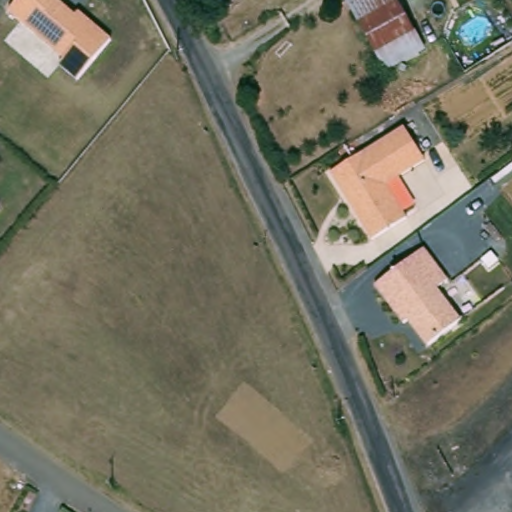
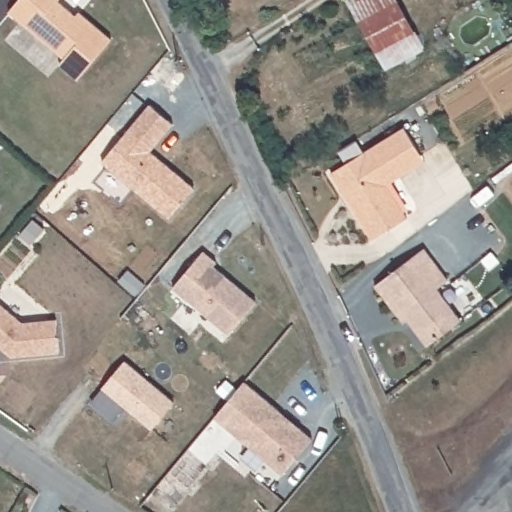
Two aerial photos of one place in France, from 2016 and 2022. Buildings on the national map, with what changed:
unchanged [(75,12),(78,8),(110,36),(76,76),(58,60),(63,55),(9,7),(15,0),(61,0),(75,12)]
unchanged [(397,0),(402,0),(416,29),(381,48),(365,16),(397,0)]
unchanged [(372,6),(369,0),(383,0),(372,6)]
new [(150,105),(173,124),(150,151),(194,188),(169,218),(102,162),(150,105)]
unchanged [(426,150),(430,156),(391,180),(412,213),(378,235),(336,169),(409,123),(426,150)]
unchanged [(426,249),(449,281),(436,291),(459,318),(425,344),(408,321),(403,324),(376,286),(426,249)]
new [(206,251),(219,262),(216,266),(259,302),(232,334),(176,287),(206,251)]
new [(1,294),(0,296),(0,294),(1,294)]
new [(23,321),(57,319),(60,351),(12,354),(0,344),(0,302),(23,321)]
new [(125,364),(175,405),(152,432),(126,410),(115,423),(92,404),(125,364)]
new [(251,380),(319,438),(289,473),(221,415),(251,380)]

